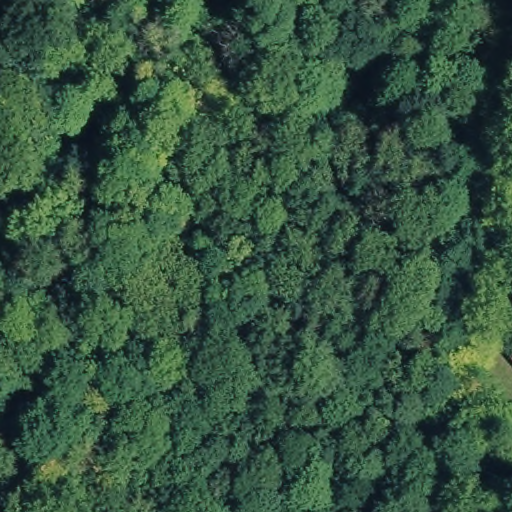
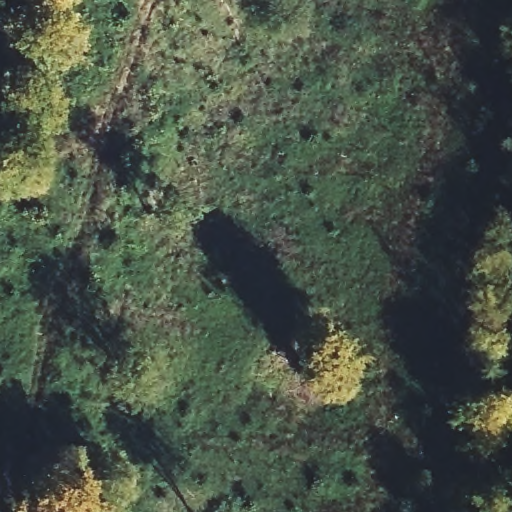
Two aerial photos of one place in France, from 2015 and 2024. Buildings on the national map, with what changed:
unchanged [(512,336),(512,345),(507,341),(512,336)]

